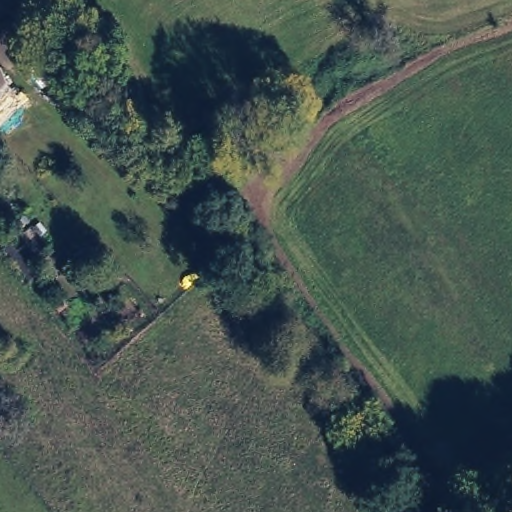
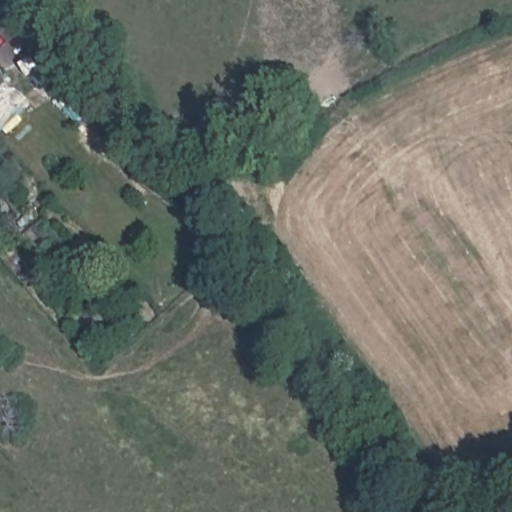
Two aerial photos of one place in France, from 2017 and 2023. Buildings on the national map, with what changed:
unchanged [(6,86),(0,91),(0,79),(6,86)]

